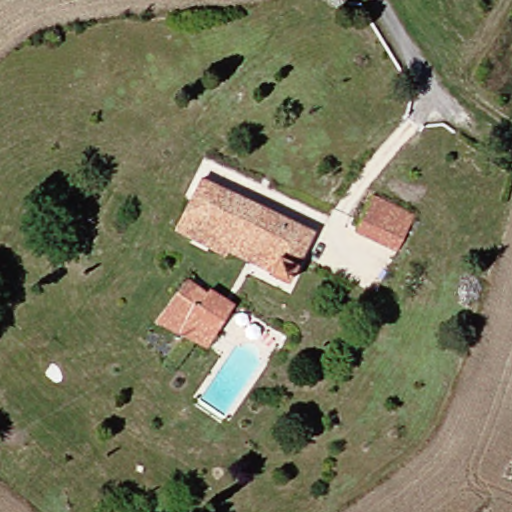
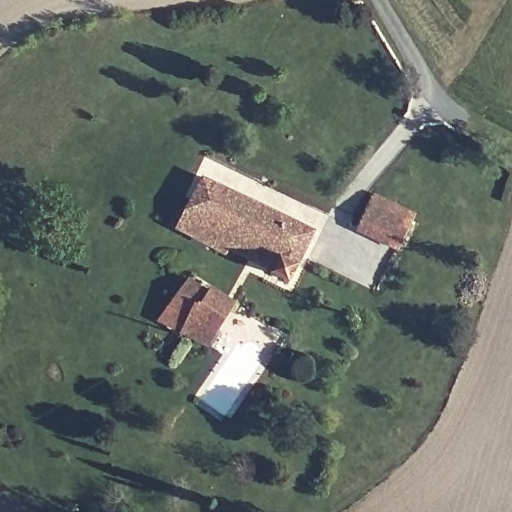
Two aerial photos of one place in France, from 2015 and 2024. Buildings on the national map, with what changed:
unchanged [(165,226),(189,176),(303,231),(279,281),(260,272),(217,251),(165,226)]
unchanged [(388,246),(348,230),(359,196),(403,215),(388,246)]
unchanged [(177,315),(208,336),(199,350),(152,318),(181,275),(197,285),(177,315)]
unchanged [(177,315),(197,285),(199,282),(230,303),(208,336),(177,315)]

